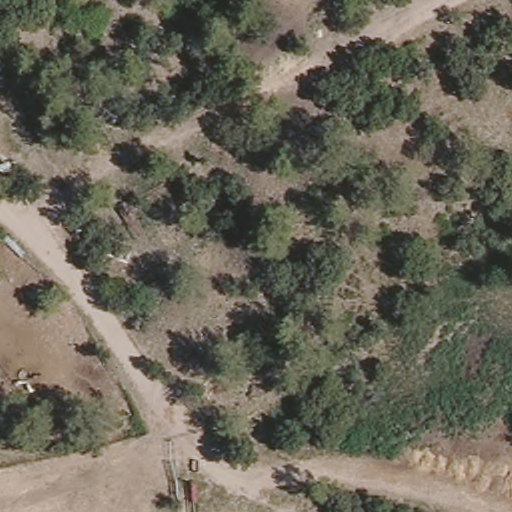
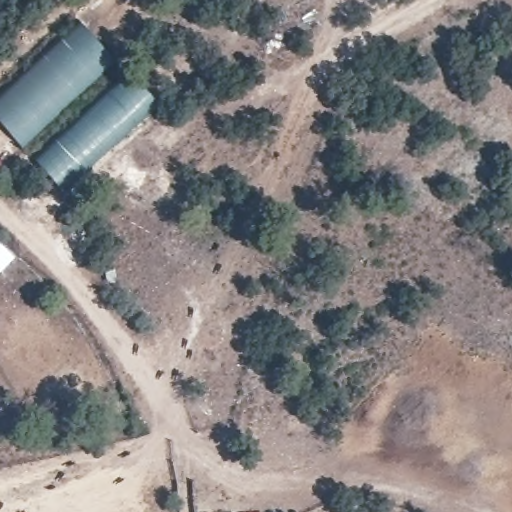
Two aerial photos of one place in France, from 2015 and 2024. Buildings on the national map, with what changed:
new [(115,60),(23,147),(0,122),(0,87),(76,17),(115,60)]
new [(58,187),(36,163),(132,75),(155,99),(58,187)]
unchanged [(7,240),(0,247),(0,233),(7,240)]

